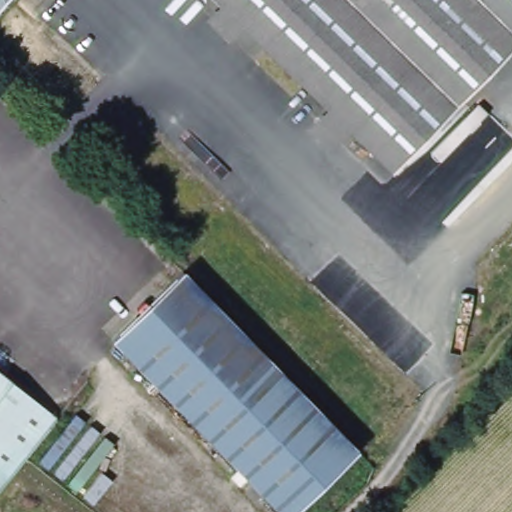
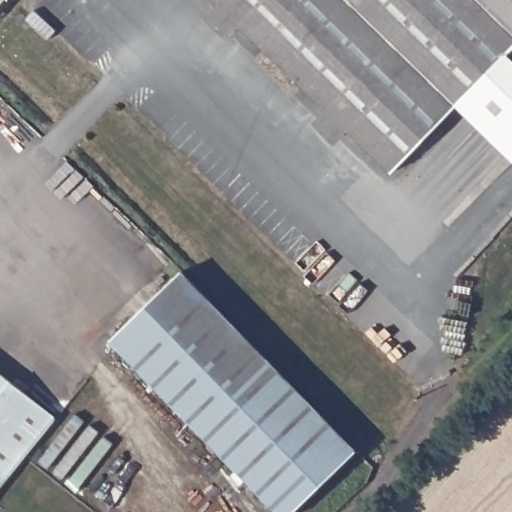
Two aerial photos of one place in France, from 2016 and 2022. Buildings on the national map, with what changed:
unchanged [(217,0),(512,0),(512,43),(396,167),(217,0)]
new [(512,157),(456,104),(505,50),(512,57),(512,157)]
unchanged [(182,269),(353,432),(288,503),(117,338),(182,269)]
unchanged [(51,422),(42,433),(41,435),(8,478),(0,472),(0,382),(51,422)]
unchanged [(8,478),(0,488),(0,472),(8,478)]

